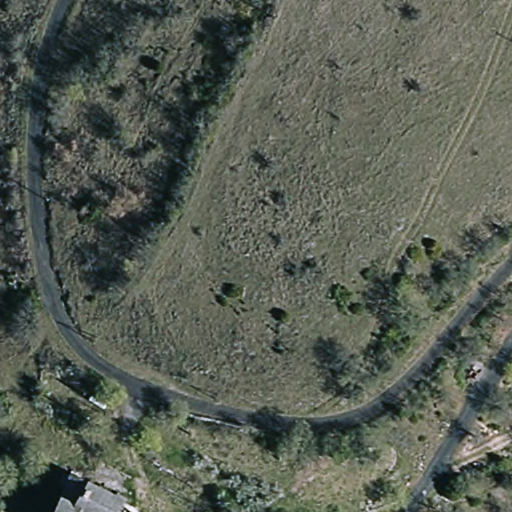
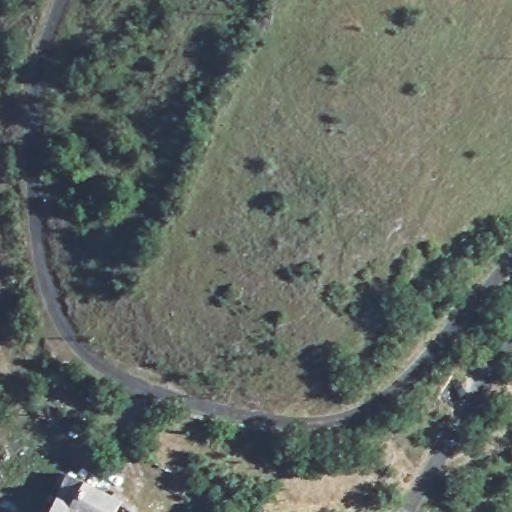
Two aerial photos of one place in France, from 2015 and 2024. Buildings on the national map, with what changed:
unchanged [(72,490),(81,476),(120,500),(112,512),(40,512),(57,480),(72,490)]

